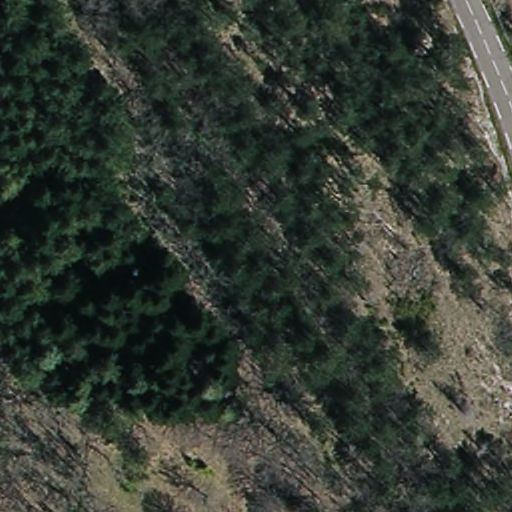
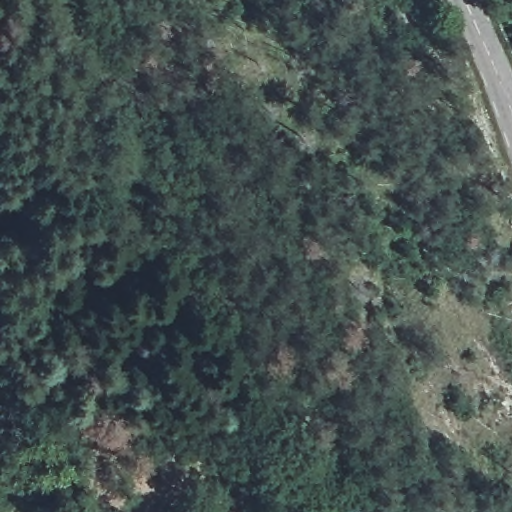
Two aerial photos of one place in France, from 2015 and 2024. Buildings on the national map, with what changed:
unchanged [(140,204),(132,185),(147,177),(157,196),(140,204)]

